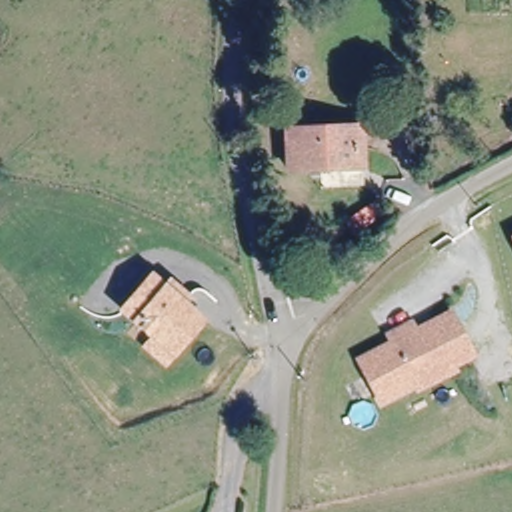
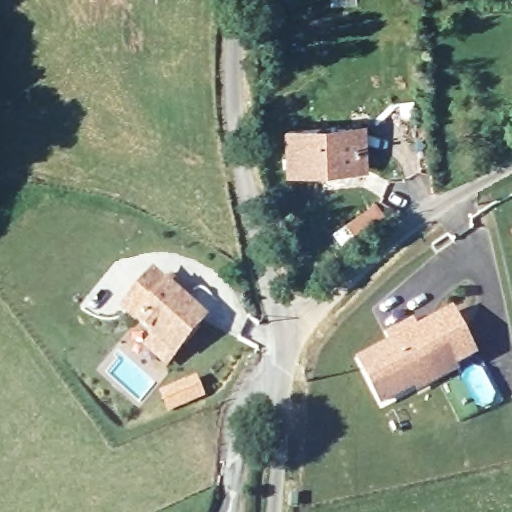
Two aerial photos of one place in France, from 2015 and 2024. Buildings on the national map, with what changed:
unchanged [(364,125),(362,168),(286,166),(287,123),(364,125)]
unchanged [(131,324),(135,321),(122,309),(148,281),(197,326),(167,357),(131,324)]
unchanged [(418,392),(416,386),(381,403),(361,361),(394,345),(390,336),(411,326),(416,335),(452,317),(472,359),(452,369),(454,374),(418,392)]

